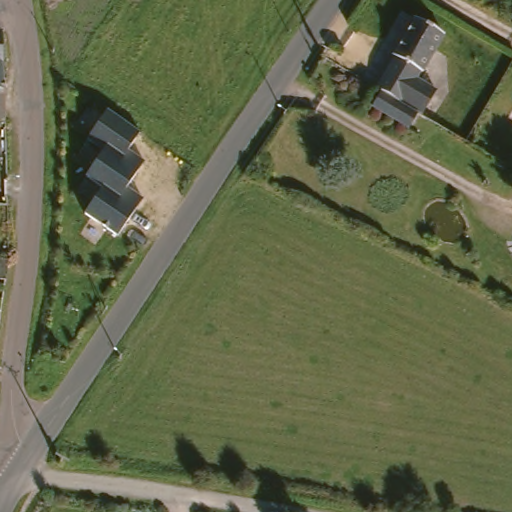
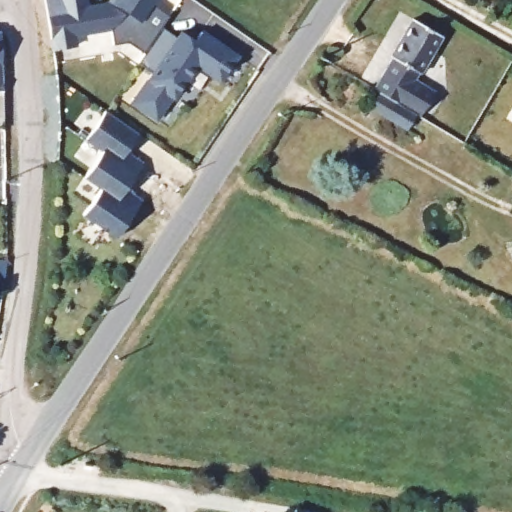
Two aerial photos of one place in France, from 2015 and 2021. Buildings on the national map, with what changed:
new [(109,17),(120,0),(122,0),(126,3),(128,0),(163,0),(154,15),(166,23),(140,61),(124,50),(111,51),(110,36),(74,39),(75,50),(50,52),(45,5),(45,0),(87,0),(89,19),(109,17)]
unchanged [(362,103),(371,87),(389,57),(387,56),(410,17),(438,34),(416,72),(415,72),(411,79),(431,90),(417,115),(411,111),(408,110),(400,125),(362,103)]
new [(154,121),(135,107),(155,77),(140,67),(165,32),(180,42),(184,36),(198,45),(204,36),(240,62),(223,86),(200,70),(176,102),(160,125),(154,121)]
unchanged [(139,165),(121,191),(137,202),(112,239),(79,216),(96,190),(80,177),(98,152),(82,140),(102,112),(132,134),(135,135),(122,152),(139,165)]
unchanged [(4,266),(2,287),(0,286),(0,265),(4,266)]

